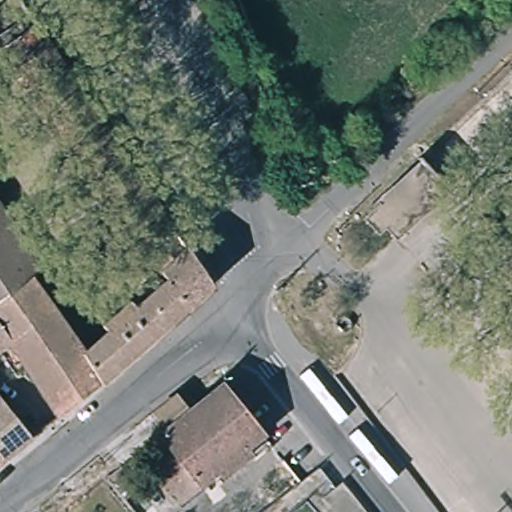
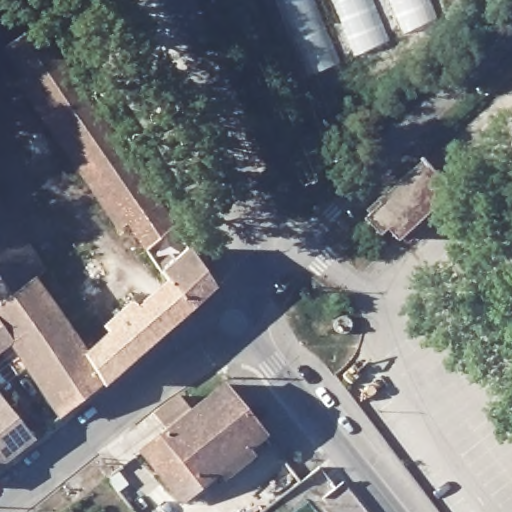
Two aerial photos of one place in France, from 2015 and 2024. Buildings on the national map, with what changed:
unchanged [(126,220),(144,249),(134,257),(75,166),(0,57),(0,0),(22,0),(156,201),(126,220)]
new [(280,0),(313,0),(339,63),(310,75),(280,0)]
new [(334,0),(371,0),(388,42),(356,55),(334,0)]
new [(391,0),(429,0),(437,20),(405,32),(391,0)]
unchanged [(428,162),(452,189),(400,237),(391,228),(382,235),(367,219),(428,162)]
unchanged [(101,325),(129,300),(135,306),(141,300),(146,296),(158,286),(161,283),(165,280),(144,249),(126,220),(156,201),(213,285),(187,308),(169,324),(160,332),(151,340),(100,383),(82,352),(107,331),(101,325)]
unchanged [(45,271),(34,280),(0,305),(0,202),(45,271)]
unchanged [(9,343),(11,342),(0,327),(0,305),(34,280),(82,352),(100,383),(80,401),(59,417),(9,343)]
unchanged [(11,342),(9,344),(0,350),(0,327),(11,342)]
unchanged [(157,413),(182,393),(188,399),(195,393),(202,402),(227,381),(269,435),(186,502),(143,450),(170,428),(157,413)]
unchanged [(15,416),(32,438),(0,465),(0,398),(15,416)]
unchanged [(372,512),(334,512),(325,501),(348,482),(372,512)]

